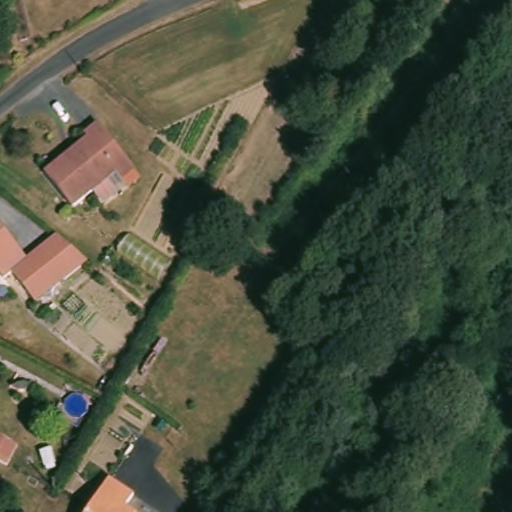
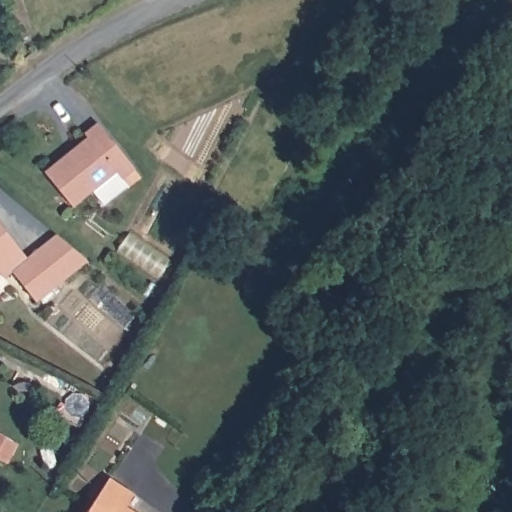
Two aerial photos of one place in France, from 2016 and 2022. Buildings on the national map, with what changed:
unchanged [(75,207),(46,172),(47,171),(90,137),(86,133),(99,123),(135,169),(123,179),(117,172),(84,200),(75,207)]
unchanged [(40,220),(74,247),(21,287),(10,273),(5,278),(0,273),(0,222),(14,240),(40,220)]
unchanged [(0,447),(0,436),(5,438),(0,447)]
unchanged [(132,497),(126,508),(132,512),(89,512),(106,482),(132,497)]

